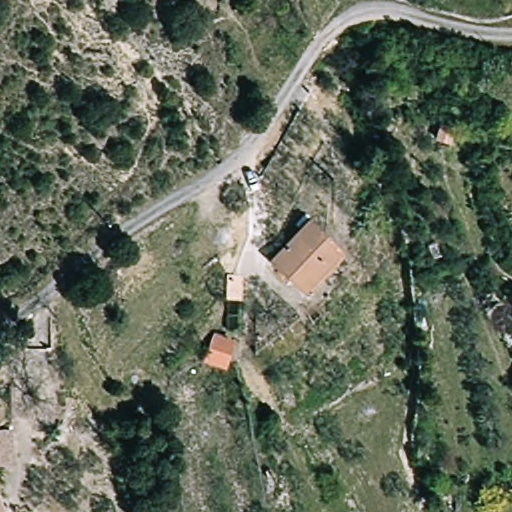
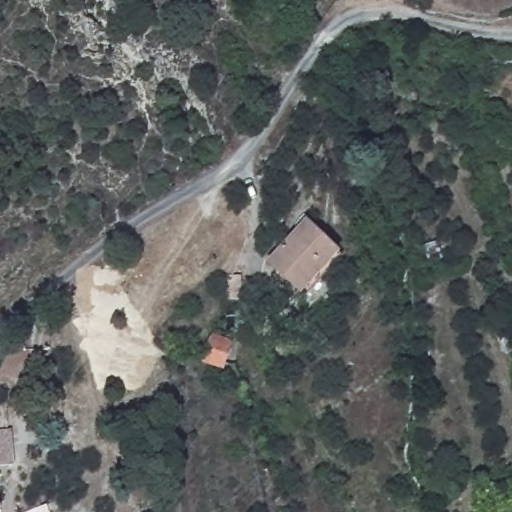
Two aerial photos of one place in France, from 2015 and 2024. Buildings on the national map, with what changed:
unchanged [(286,279),(269,263),(310,224),(339,254),(335,258),(299,293),(286,279)]
unchanged [(233,341),(223,372),(201,363),(212,335),(233,341)]
unchanged [(0,512),(0,505),(3,512),(0,512)]

